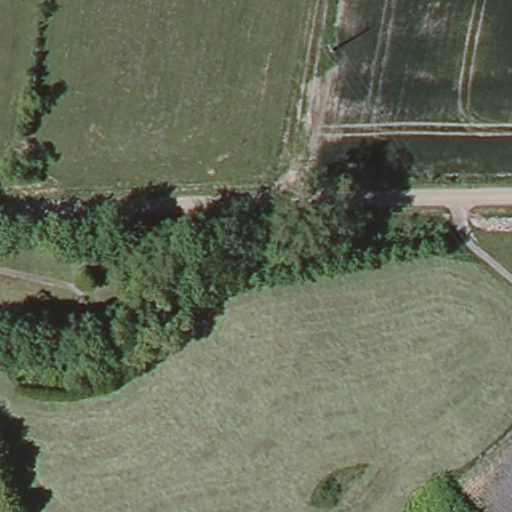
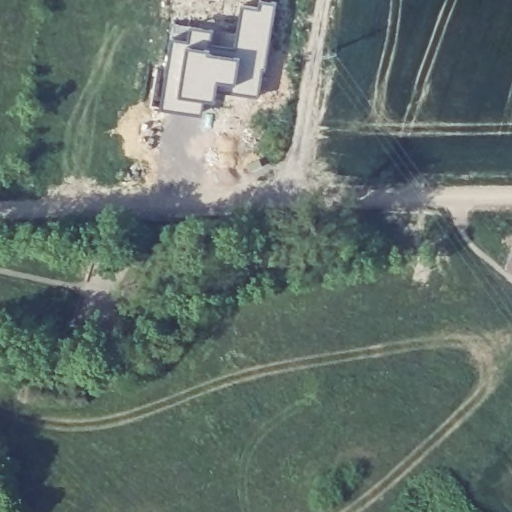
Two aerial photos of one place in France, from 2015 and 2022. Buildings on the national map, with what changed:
new [(212,31),(210,46),(236,49),(242,8),(261,10),(261,4),(276,6),(266,72),(262,72),(257,99),(215,93),(214,105),(202,103),(201,118),(160,111),(173,25),(212,31)]

